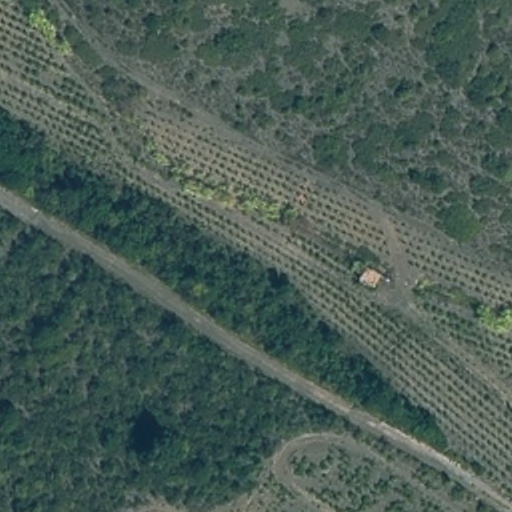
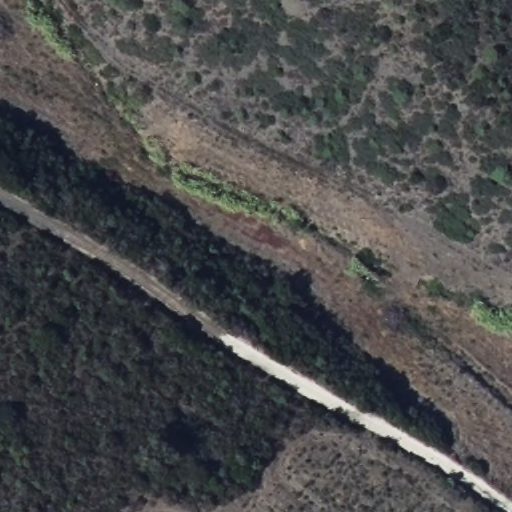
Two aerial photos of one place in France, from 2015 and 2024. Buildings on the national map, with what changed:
unchanged [(366,261),(384,274),(374,289),(356,274),(366,261)]

